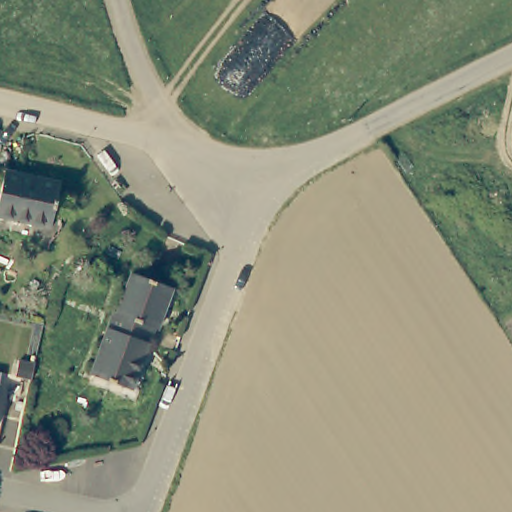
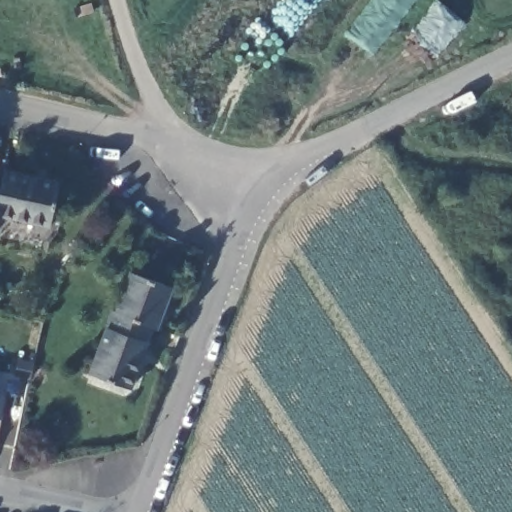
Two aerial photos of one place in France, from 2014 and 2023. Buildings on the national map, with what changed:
unchanged [(53,228),(0,218),(0,200),(5,173),(61,184),(53,228)]
unchanged [(119,311),(123,312),(137,273),(177,288),(161,328),(160,327),(154,342),(112,328),(119,311)]
unchanged [(154,342),(136,387),(96,372),(112,328),(154,342)]

